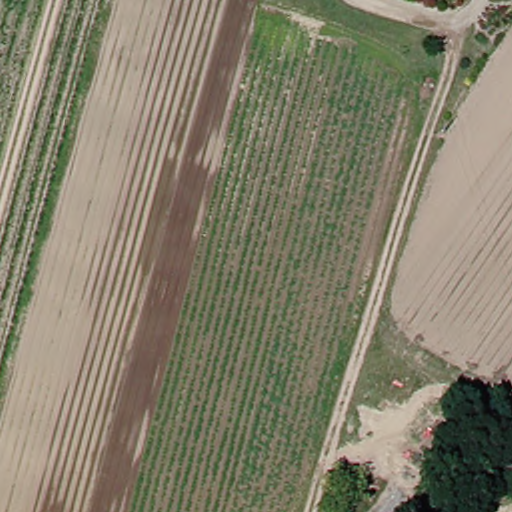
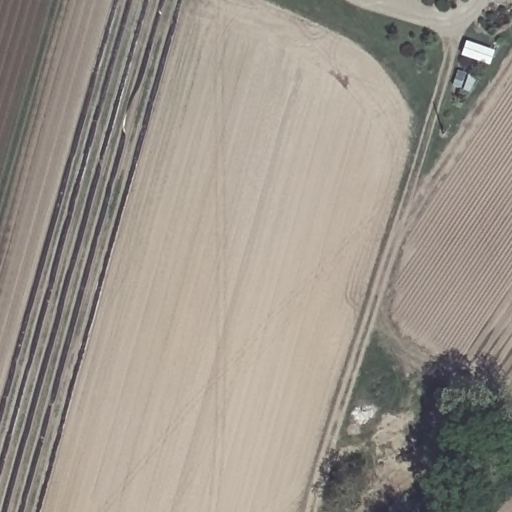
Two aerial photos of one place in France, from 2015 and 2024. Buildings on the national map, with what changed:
[]

